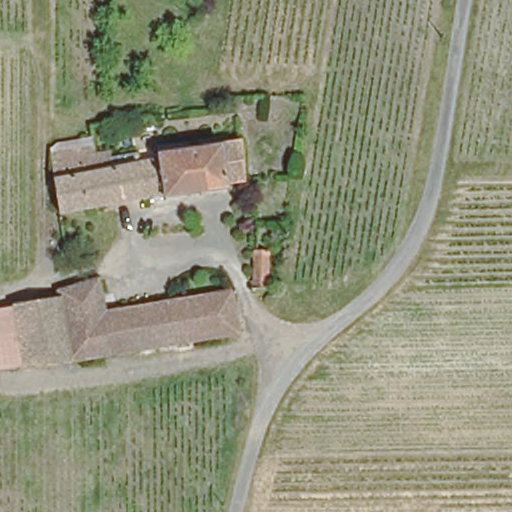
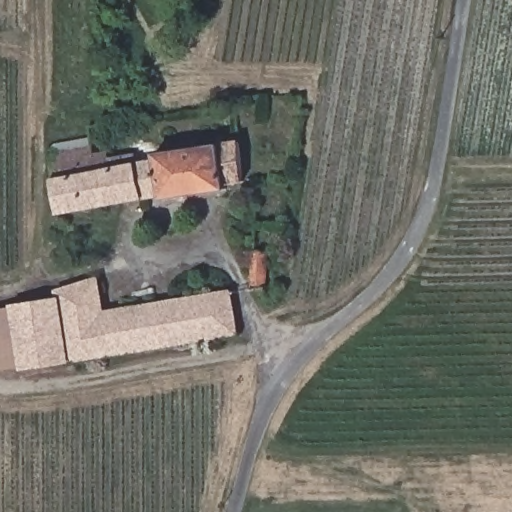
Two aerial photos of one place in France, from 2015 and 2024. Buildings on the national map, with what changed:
unchanged [(48,155),(95,130),(99,129),(103,150),(94,152),(95,159),(105,158),(107,164),(127,160),(128,169),(159,163),(158,157),(240,144),(247,182),(229,185),(229,192),(167,204),(165,196),(61,214),(48,155)]
unchanged [(253,255),(266,255),(264,290),(250,291),(253,255)]
unchanged [(12,310),(43,305),(65,301),(86,298),(86,290),(105,287),(108,307),(231,291),(232,297),(239,335),(52,365),(21,370),(12,310)]

